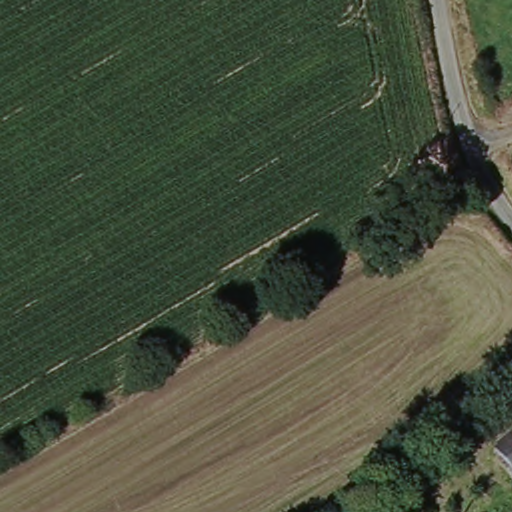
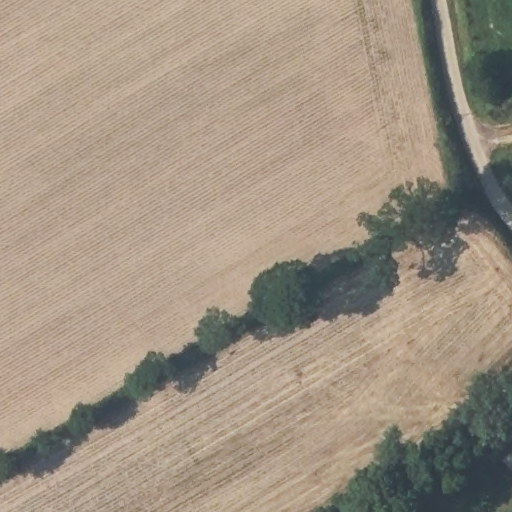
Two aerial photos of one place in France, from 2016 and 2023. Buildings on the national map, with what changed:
unchanged [(512,435),(512,470),(494,447),(512,435)]

